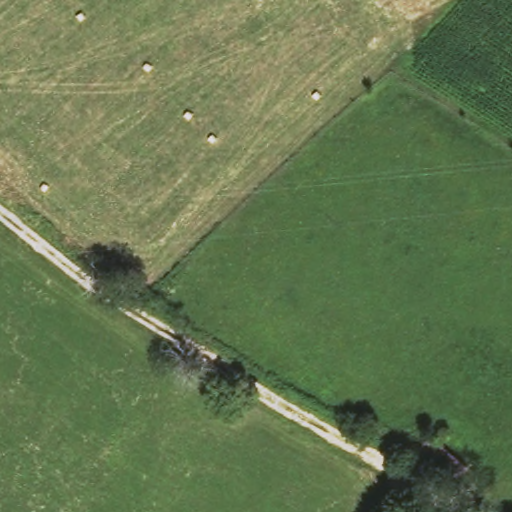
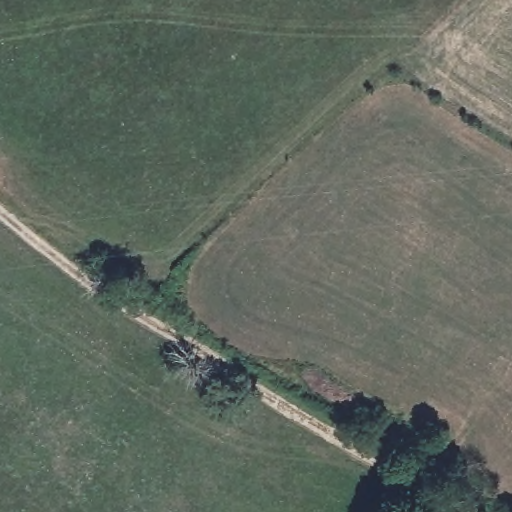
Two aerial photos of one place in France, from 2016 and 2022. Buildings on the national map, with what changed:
unchanged [(467,464),(455,478),(415,445),(429,430),(467,464)]

